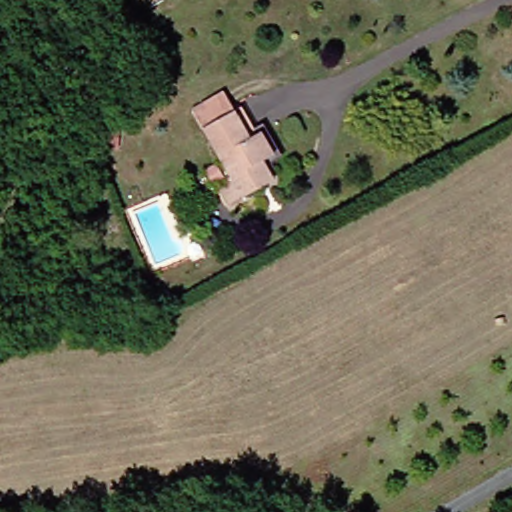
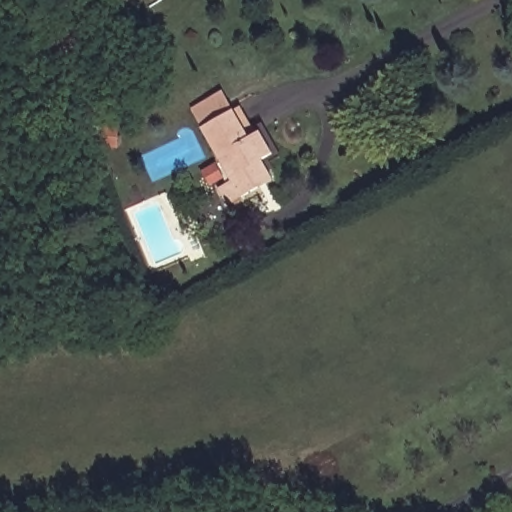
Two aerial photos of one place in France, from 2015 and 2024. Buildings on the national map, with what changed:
unchanged [(280,157),(267,166),(274,182),(230,207),(220,187),(233,181),(205,128),(194,107),(225,91),(235,112),(247,105),(262,136),(270,132),(280,157)]
unchanged [(110,132),(110,147),(90,147),(90,132),(110,132)]
unchanged [(155,318),(132,323),(125,299),(146,296),(155,318)]

